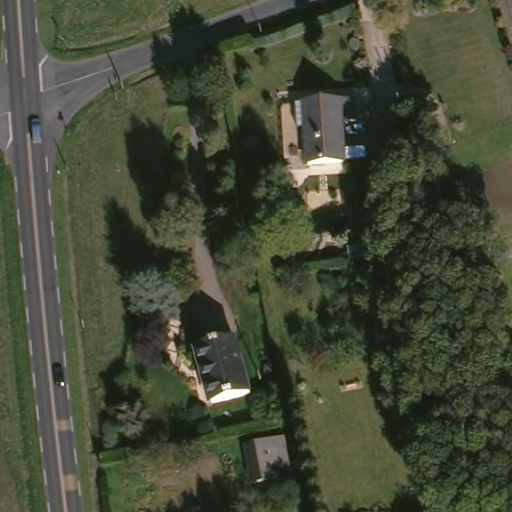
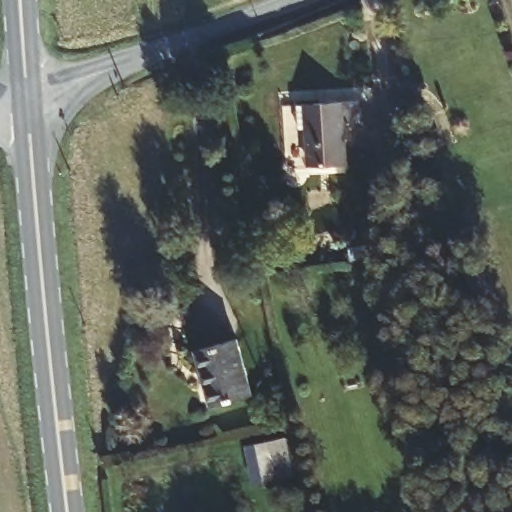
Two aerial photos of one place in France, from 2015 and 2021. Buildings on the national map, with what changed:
unchanged [(360,121),(345,121),(347,162),(311,165),(309,127),(300,128),(299,104),(316,103),(358,100),(360,121)]
unchanged [(397,237),(375,238),(373,184),(395,183),(397,237)]
unchanged [(254,395),(213,408),(204,375),(202,376),(197,357),(238,345),(254,395)]
unchanged [(293,476),(259,482),(251,443),(285,436),(293,476)]

